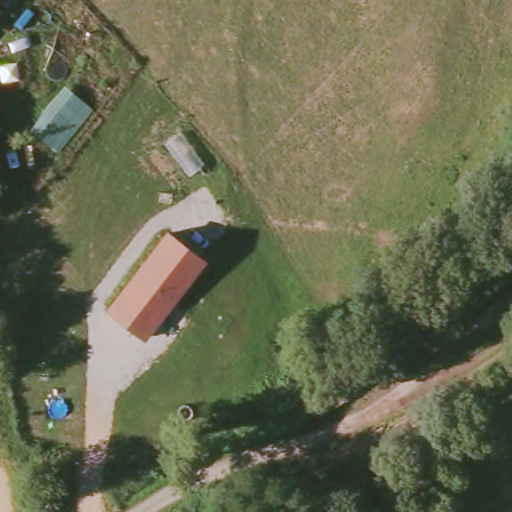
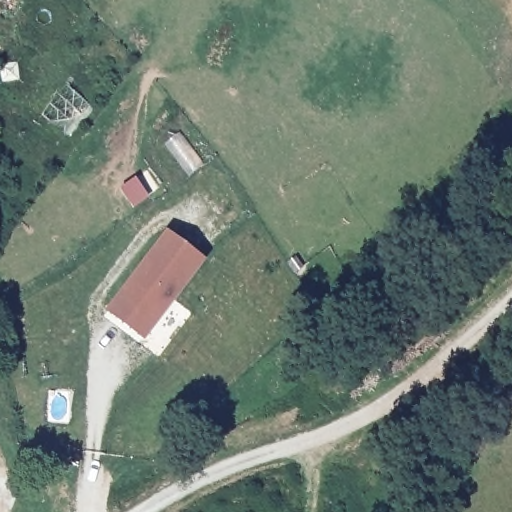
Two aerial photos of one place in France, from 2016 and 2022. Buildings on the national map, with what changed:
unchanged [(145,341),(105,311),(167,230),(206,260),(145,341)]

